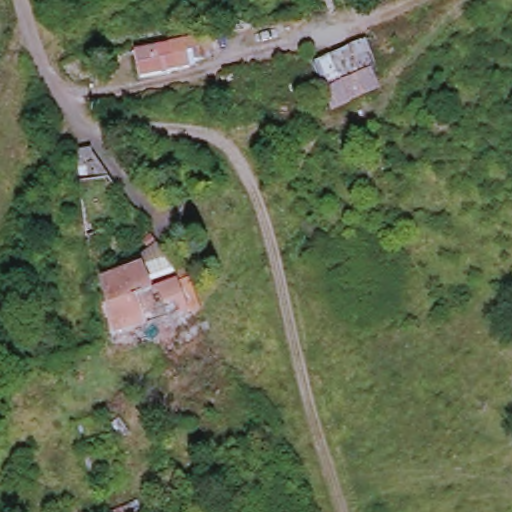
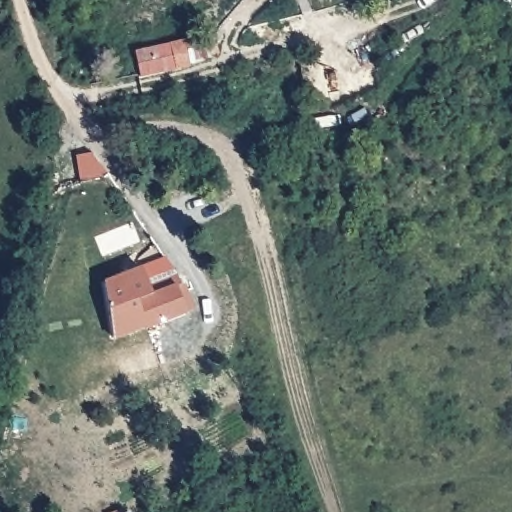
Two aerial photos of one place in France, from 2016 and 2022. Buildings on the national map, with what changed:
unchanged [(371,38),(387,84),(336,106),(329,91),(314,61),(342,49),(371,38)]
unchanged [(186,43),(191,66),(144,78),(139,56),(186,43)]
unchanged [(194,283),(203,308),(190,315),(115,340),(107,283),(146,268),(152,294),(191,284),(194,283)]
unchanged [(229,374),(180,400),(169,383),(183,377),(159,337),(197,321),(229,374)]

